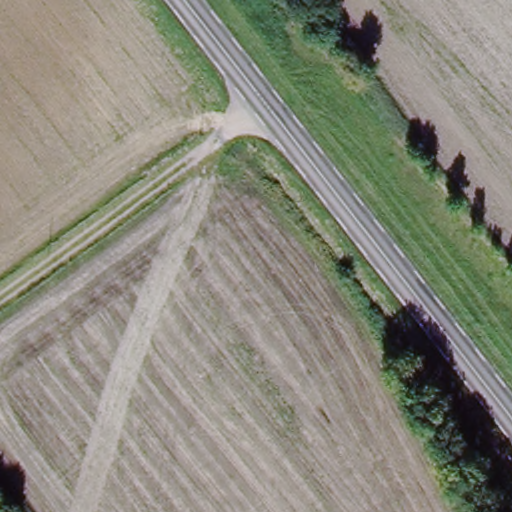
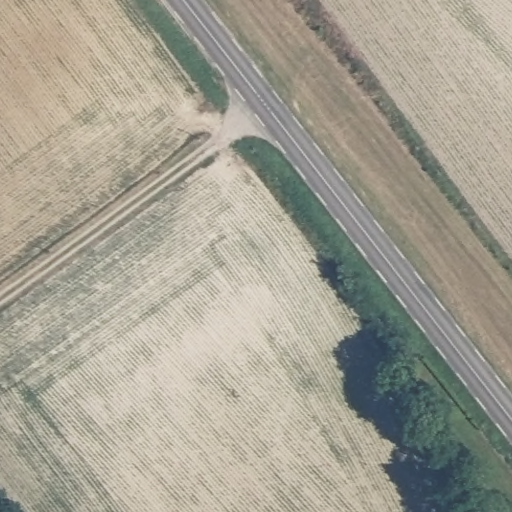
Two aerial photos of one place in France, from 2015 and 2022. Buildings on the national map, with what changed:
[]

